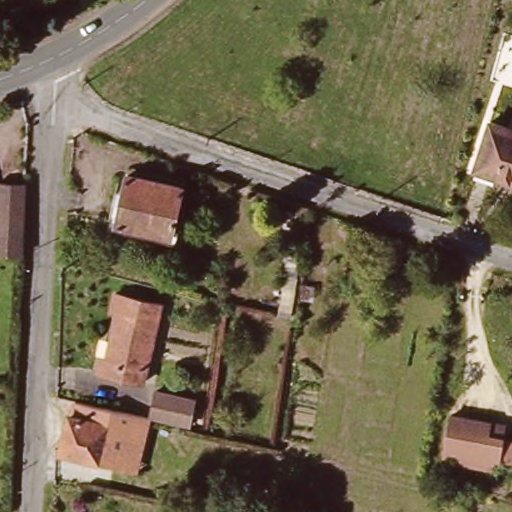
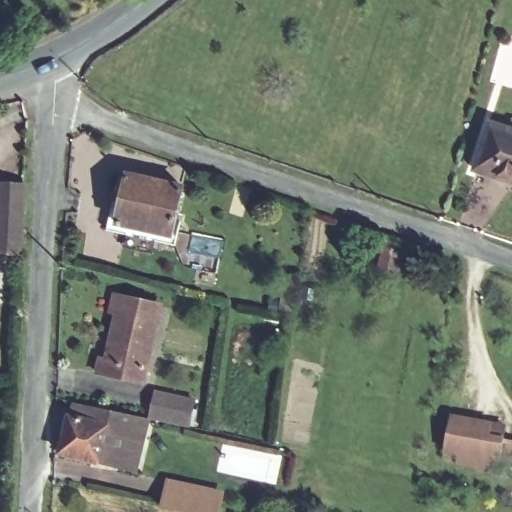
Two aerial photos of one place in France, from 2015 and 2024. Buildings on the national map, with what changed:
unchanged [(512,126),(512,177),(476,165),(491,120),(512,126)]
unchanged [(185,189),(174,239),(118,227),(130,177),(185,189)]
unchanged [(20,256),(0,255),(0,184),(22,185),(20,256)]
unchanged [(160,306),(144,383),(99,375),(101,363),(108,365),(119,318),(110,316),(114,297),(160,306)]
unchanged [(156,390),(195,400),(190,425),(153,418),(150,417),(156,390)]
unchanged [(97,465),(59,456),(67,417),(70,418),(74,403),(147,422),(135,469),(133,473),(97,465)]
unchanged [(454,461),(456,451),(441,448),(447,414),(488,421),(503,424),(501,436),(497,458),(491,457),(489,467),(454,461)]
new [(226,491),(222,512),(180,512),(160,508),(166,478),(226,491)]

